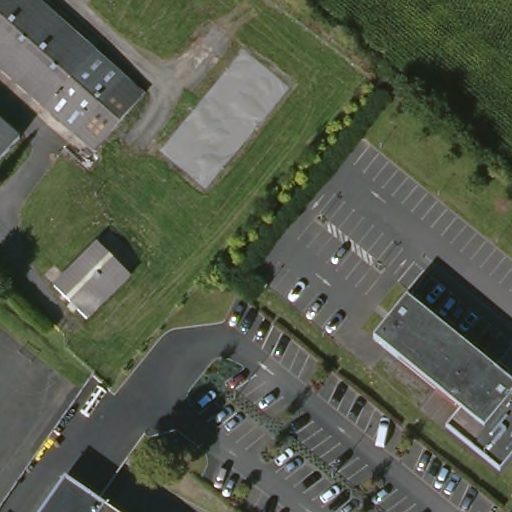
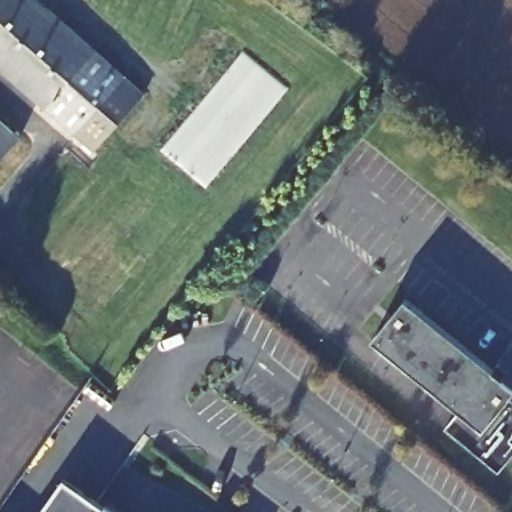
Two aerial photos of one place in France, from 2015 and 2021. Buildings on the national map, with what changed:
unchanged [(42,0),(137,83),(87,142),(0,66),(0,23),(21,0),(42,0)]
unchanged [(0,165),(0,112),(26,135),(0,165)]
demolished [(102,243),(137,280),(93,321),(59,286),(102,243)]
unchanged [(505,473),(451,430),(464,412),(376,341),(409,299),(512,381),(512,464),(505,473)]
unchanged [(72,475),(118,506),(114,512),(49,512),(72,475)]
unchanged [(126,512),(114,512),(118,506),(126,512)]

